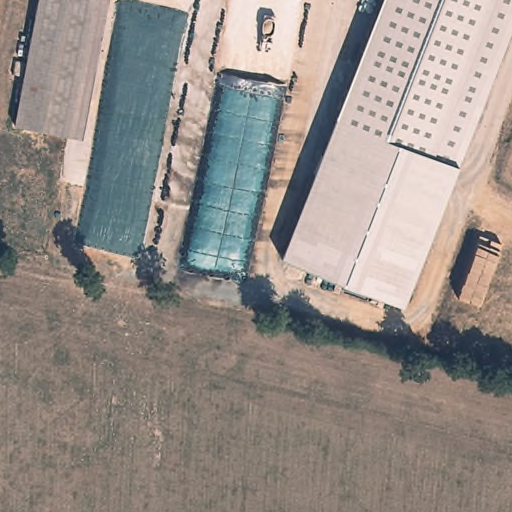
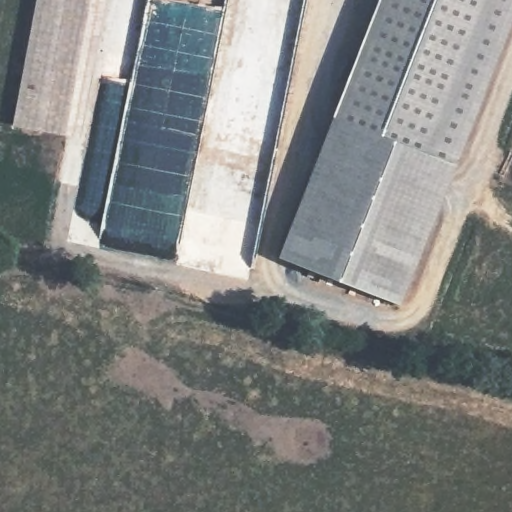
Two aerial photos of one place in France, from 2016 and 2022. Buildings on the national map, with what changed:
unchanged [(15,130),(40,0),(93,0),(67,140),(15,130)]
unchanged [(404,307),(279,260),(336,115),(381,0),(512,0),(512,31),(459,167),(404,307)]

